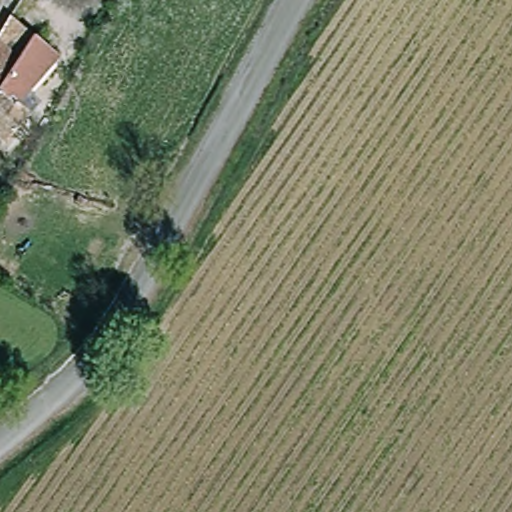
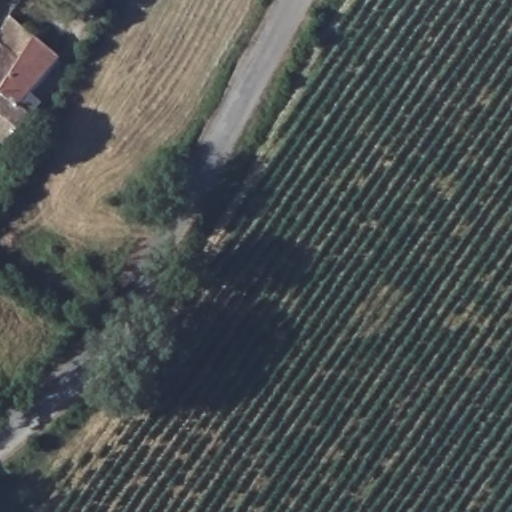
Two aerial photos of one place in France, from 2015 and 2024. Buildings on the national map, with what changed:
unchanged [(8,11),(31,35),(53,56),(38,76),(15,105),(26,116),(0,146),(0,31),(8,11)]

